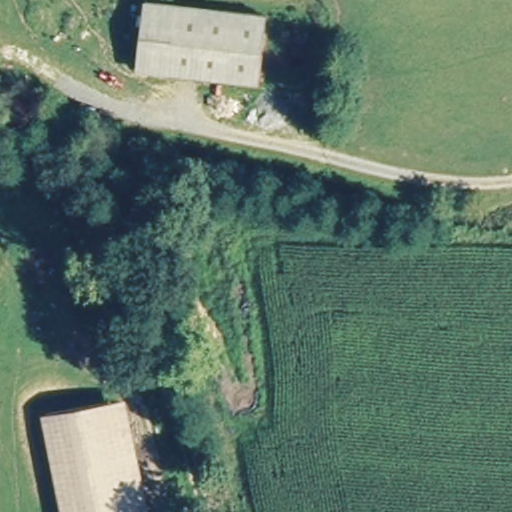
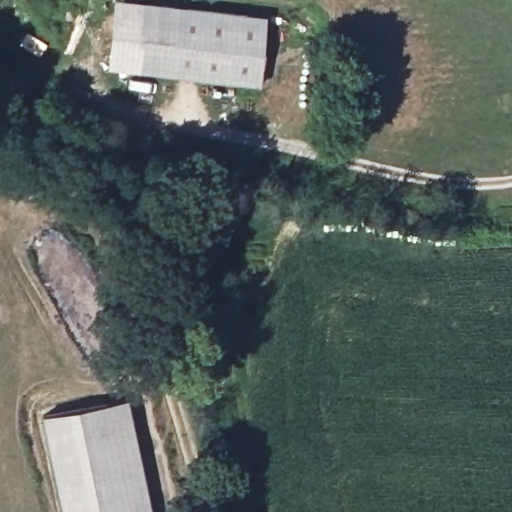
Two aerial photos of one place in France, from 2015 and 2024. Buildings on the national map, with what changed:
unchanged [(143,8),(261,21),(258,83),(135,74),(143,8)]
unchanged [(140,512),(72,512),(53,416),(118,403),(140,512)]

